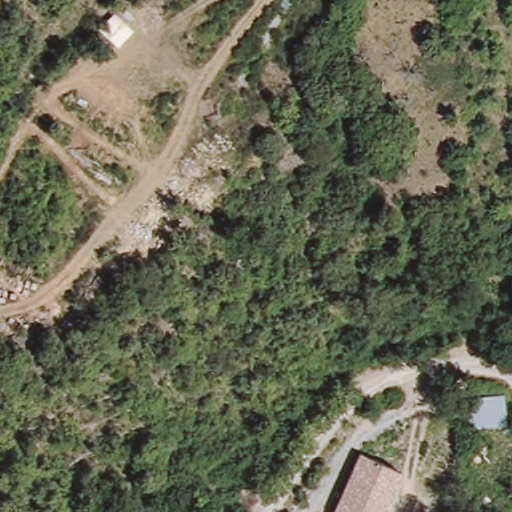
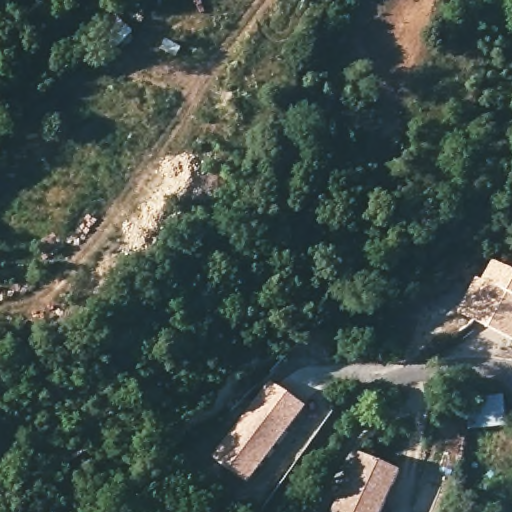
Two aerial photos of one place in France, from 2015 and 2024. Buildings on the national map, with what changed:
new [(475,276),(482,279),(492,259),(512,270),(512,342),(457,313),(475,276)]
new [(212,456),(269,380),(306,407),(248,484),(212,456)]
unchanged [(512,416),(512,424),(469,426),(467,391),(507,390),(512,416)]
unchanged [(329,510),(364,453),(400,475),(378,512),(332,512),(329,510)]

